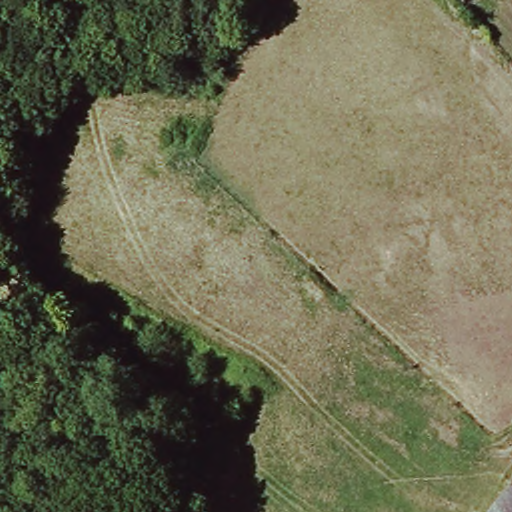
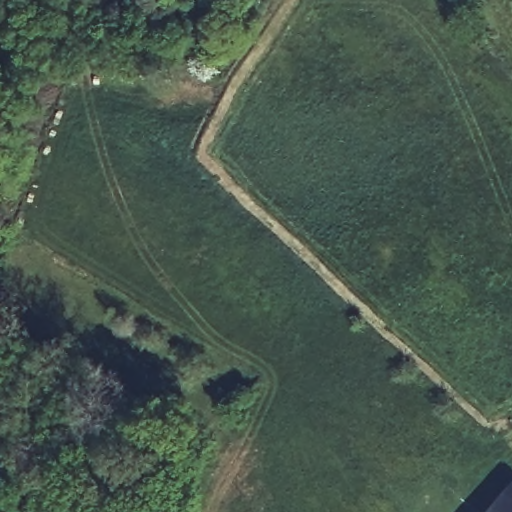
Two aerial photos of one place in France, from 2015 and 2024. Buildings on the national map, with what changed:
unchanged [(200,455),(198,459),(190,463),(186,461),(182,455),(184,449),(192,445),(197,447),(200,455)]
unchanged [(512,484),(512,512),(488,512),(512,484)]

